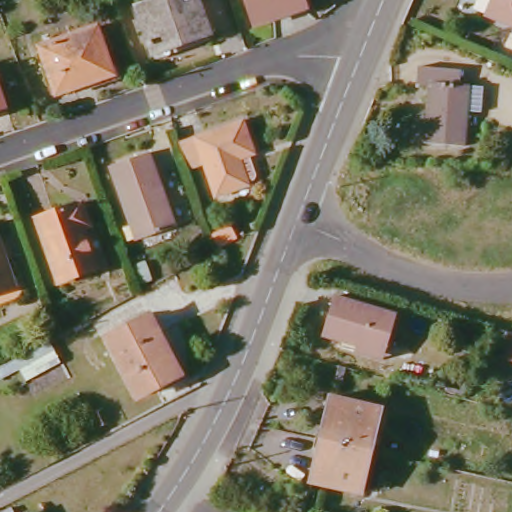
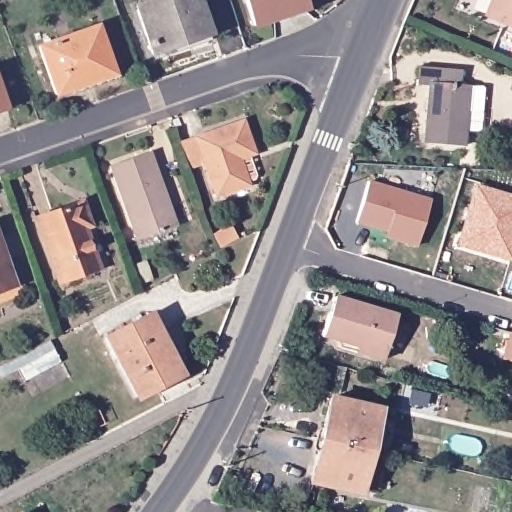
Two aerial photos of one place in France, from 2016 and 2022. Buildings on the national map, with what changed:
unchanged [(142,1),(146,0),(205,0),(215,29),(159,49),(142,1)]
unchanged [(251,0),(309,0),(312,10),(260,29),(251,0)]
unchanged [(512,27),(495,19),(490,17),(496,0),(512,0),(512,27)]
unchanged [(50,43),(105,24),(123,70),(67,91),(50,43)]
unchanged [(435,83),(420,81),(422,64),(465,69),(464,82),(474,83),(497,86),(493,111),(470,107),(465,144),(427,139),(435,83)]
unchanged [(9,109),(0,113),(0,85),(9,109)]
unchanged [(188,140),(251,117),(263,151),(249,156),(256,178),(254,183),(224,193),(212,159),(197,165),(188,140)]
unchanged [(112,165),(152,151),(179,223),(139,238),(112,165)]
new [(367,184),(430,203),(416,249),(394,242),(396,236),(355,224),(367,184)]
new [(512,200),(512,254),(510,262),(476,251),(457,246),(461,234),(475,188),(512,200)]
unchanged [(46,214),(89,199),(97,222),(91,225),(104,264),(67,277),(46,214)]
unchanged [(4,238),(2,241),(15,279),(0,285),(0,226),(4,238)]
unchanged [(341,302),(403,322),(393,356),(365,348),(362,352),(329,342),(341,302)]
unchanged [(150,312),(183,370),(141,393),(109,336),(150,312)]
unchanged [(512,335),(512,367),(498,363),(507,334),(512,335)]
unchanged [(335,399),(383,411),(374,452),(325,441),(335,399)]
unchanged [(364,494),(315,483),(325,441),(374,452),(364,494)]

